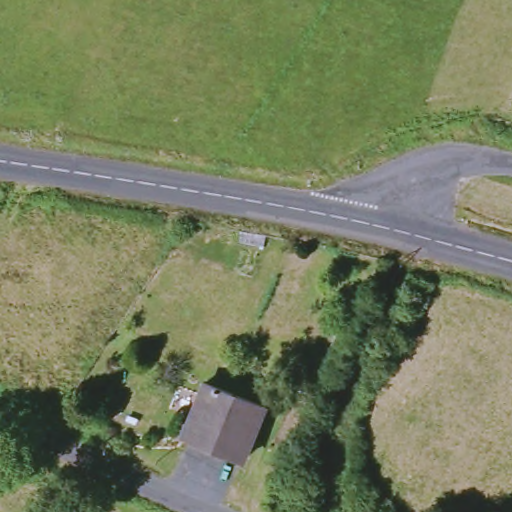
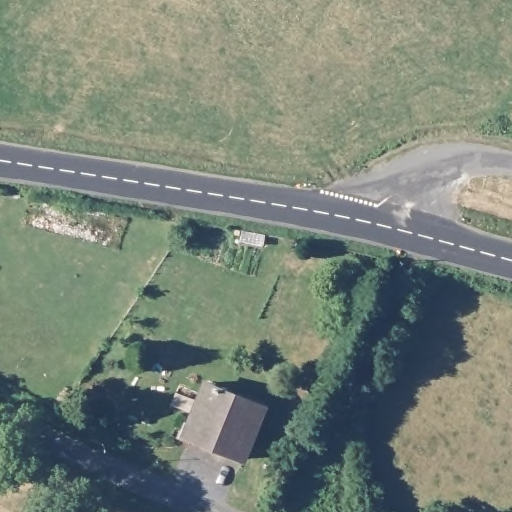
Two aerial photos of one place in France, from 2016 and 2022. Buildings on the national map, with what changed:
unchanged [(250,465),(186,438),(210,380),(274,405),(250,465)]

